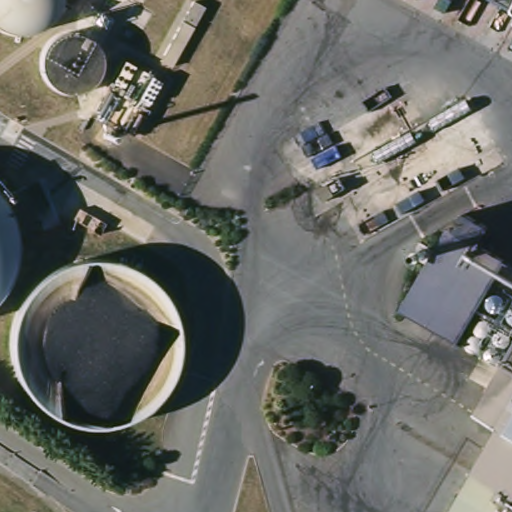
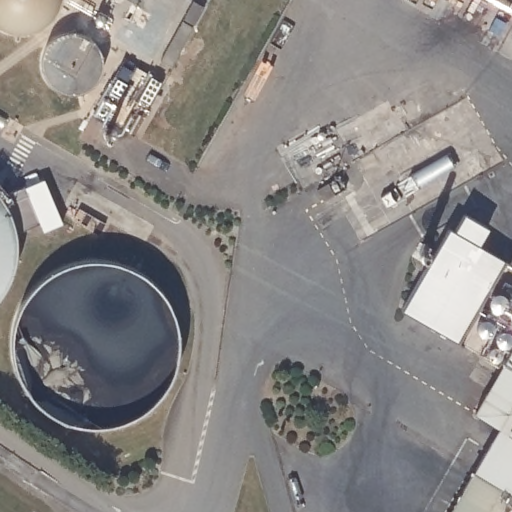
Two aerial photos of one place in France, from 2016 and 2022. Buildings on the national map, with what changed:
unchanged [(207,9),(174,69),(161,61),(193,0),(207,9)]
unchanged [(164,83),(135,137),(108,121),(136,68),(164,83)]
unchanged [(458,340),(403,310),(448,228),(455,231),(464,213),(489,227),(479,247),(504,259),(458,340)]
unchanged [(471,415),(502,362),(468,343),(495,296),(512,306),(512,512),(450,512),(497,430),(471,415)]

